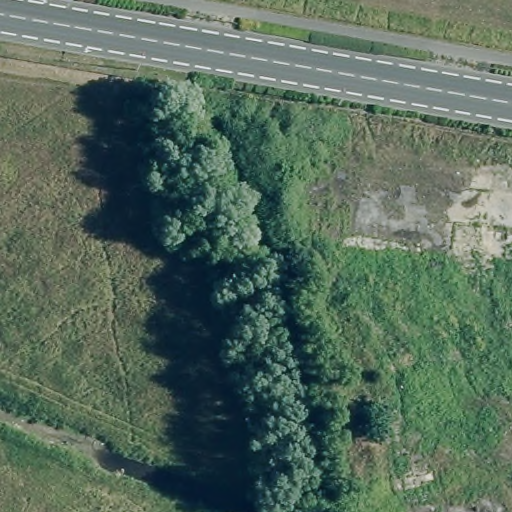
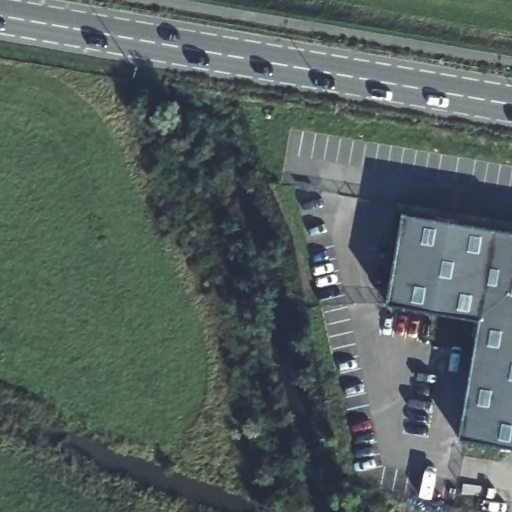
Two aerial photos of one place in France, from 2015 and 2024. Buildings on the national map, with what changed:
new [(512,230),(512,447),(458,438),(478,319),(387,303),(403,211),(512,230)]

